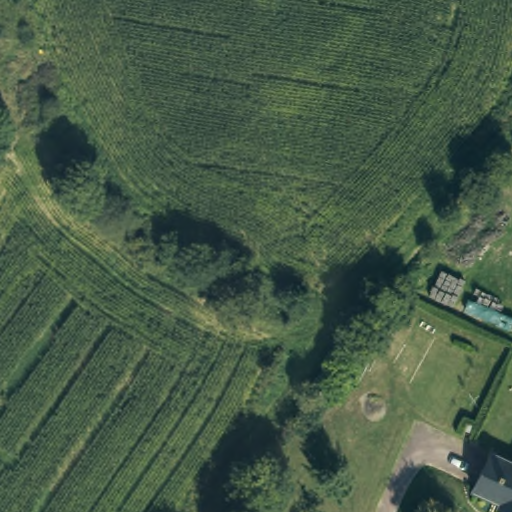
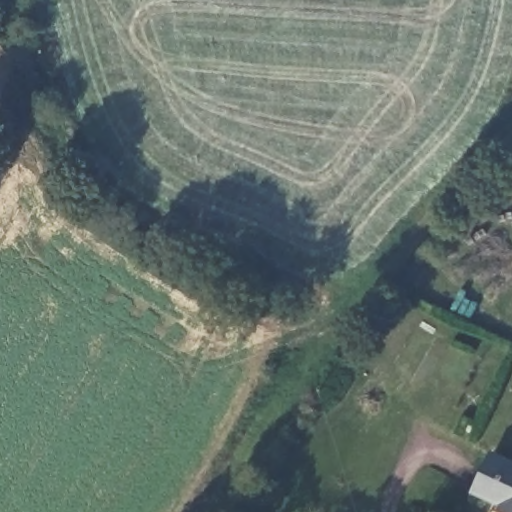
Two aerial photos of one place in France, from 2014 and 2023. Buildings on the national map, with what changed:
unchanged [(512,462),(512,512),(498,512),(496,511),(497,505),(474,491),(493,453),(512,462)]

